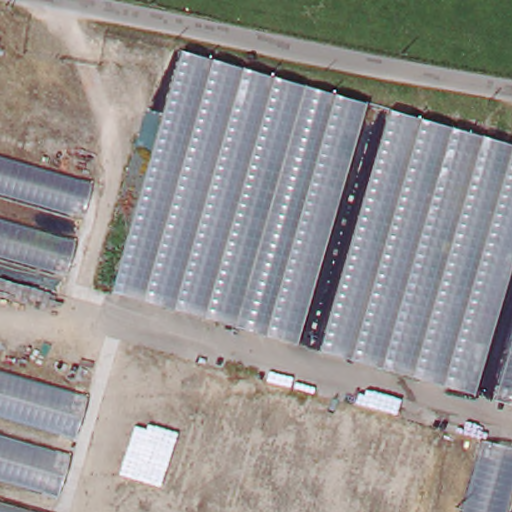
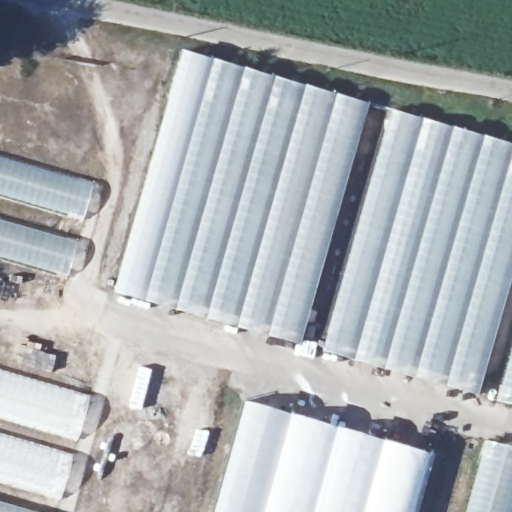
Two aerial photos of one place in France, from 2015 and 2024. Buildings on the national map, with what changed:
unchanged [(512,128),(512,278),(479,395),(111,297),(184,47),(512,128)]
unchanged [(0,256),(0,152),(94,182),(63,276),(0,256)]
unchanged [(495,398),(512,336),(512,404),(495,398)]
unchanged [(0,367),(94,396),(60,512),(0,512),(0,367)]
new [(413,512),(212,512),(242,403),(430,455),(413,512)]
unchanged [(487,441),(512,448),(512,512),(466,512),(487,441)]

